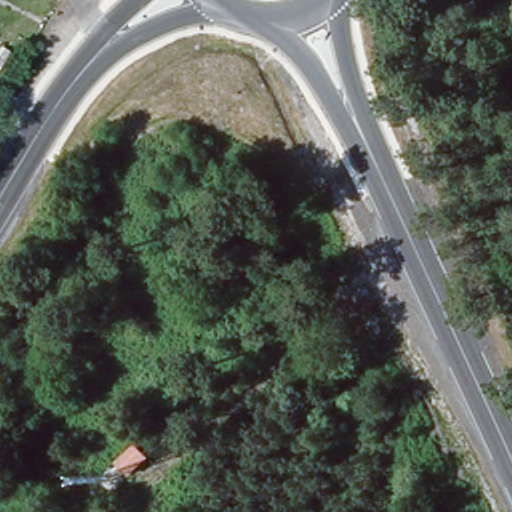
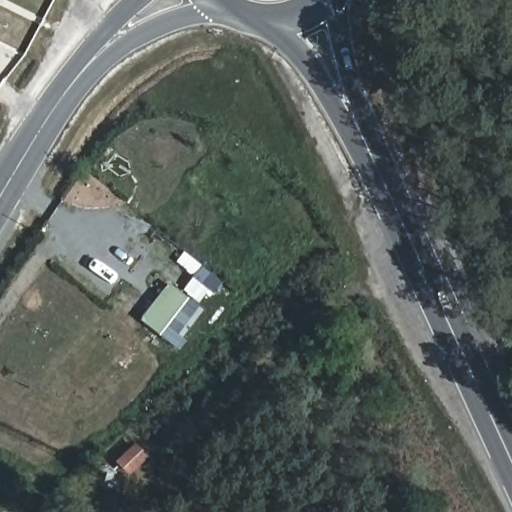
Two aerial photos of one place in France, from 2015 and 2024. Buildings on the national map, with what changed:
new [(182,338),(184,339),(178,348),(141,320),(168,284),(203,311),(182,338)]
unchanged [(128,479),(115,465),(134,446),(146,460),(128,479)]

